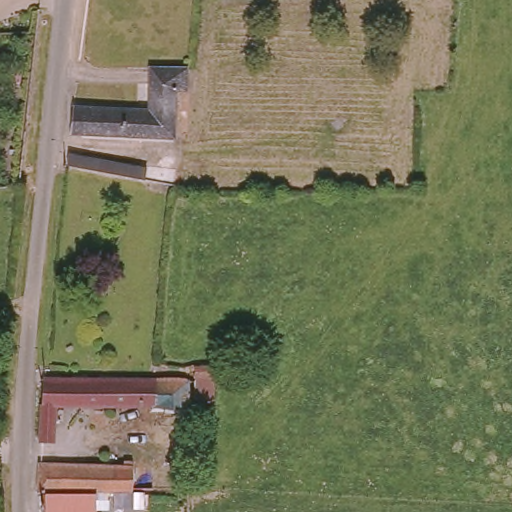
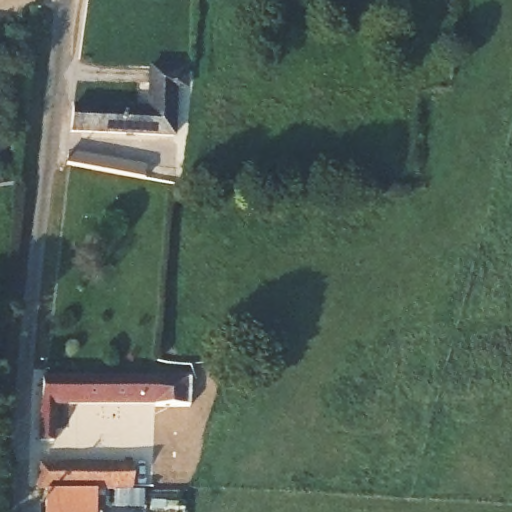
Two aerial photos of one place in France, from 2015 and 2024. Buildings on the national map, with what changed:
unchanged [(177,67),(180,110),(148,112),(146,68),(177,67)]
unchanged [(100,114),(148,112),(180,110),(179,135),(76,139),(77,116),(100,114)]
unchanged [(127,155),(127,167),(70,165),(70,154),(127,155)]
unchanged [(71,387),(78,387),(92,386),(126,383),(150,380),(191,379),(193,379),(193,382),(195,402),(192,402),(185,403),(153,405),(50,411),(50,443),(39,444),(38,389),(71,387)]
unchanged [(120,462),(120,453),(135,453),(136,485),(94,489),(44,493),(38,493),(38,468),(120,462)]
unchanged [(96,512),(46,512),(44,493),(94,489),(96,512)]

